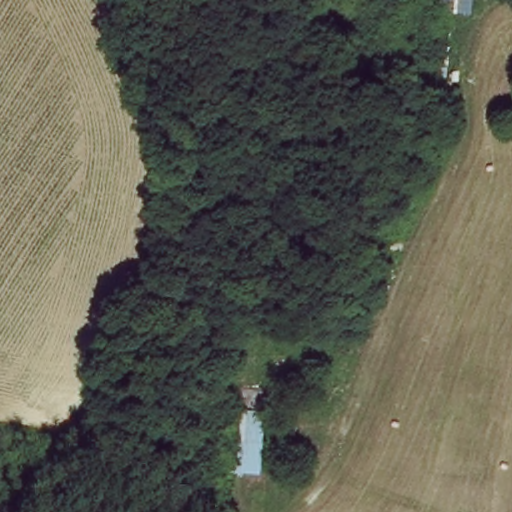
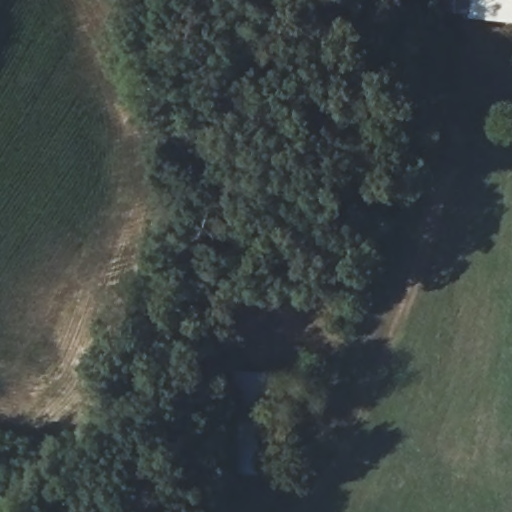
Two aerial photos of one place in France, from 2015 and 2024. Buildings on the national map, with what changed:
new [(472,0),(469,17),(447,12),(449,0),(472,0)]
new [(512,0),(512,22),(469,17),(472,0),(512,0)]

